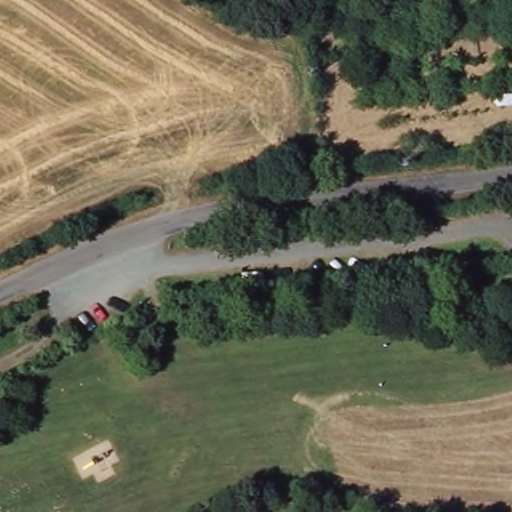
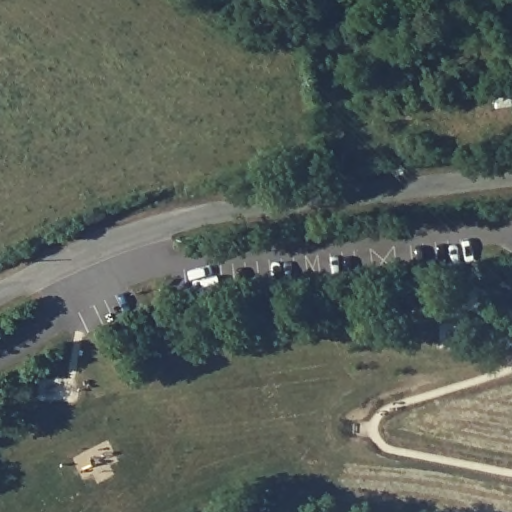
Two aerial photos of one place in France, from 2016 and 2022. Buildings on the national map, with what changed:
[]

